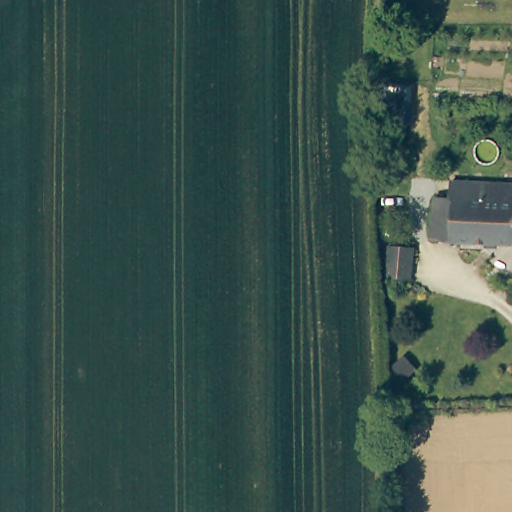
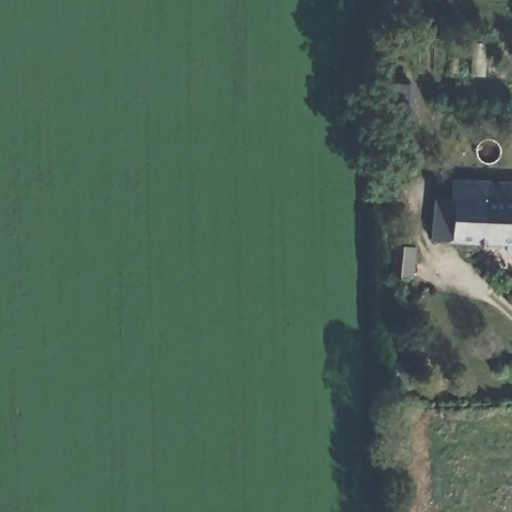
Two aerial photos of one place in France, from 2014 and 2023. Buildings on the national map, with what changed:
unchanged [(512,180),(512,243),(436,239),(438,194),(458,194),(460,177),(512,180)]
unchanged [(409,245),(407,278),(384,278),(385,243),(409,245)]

